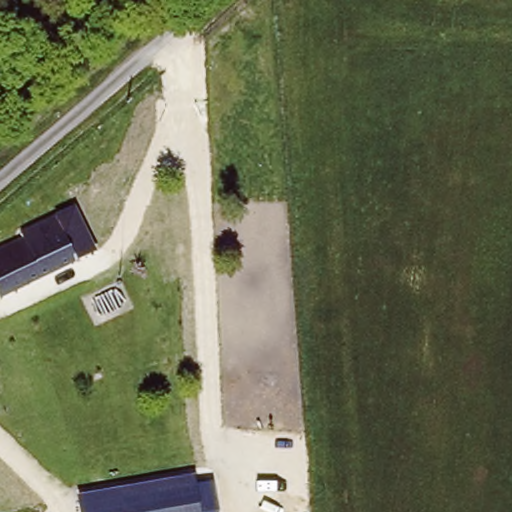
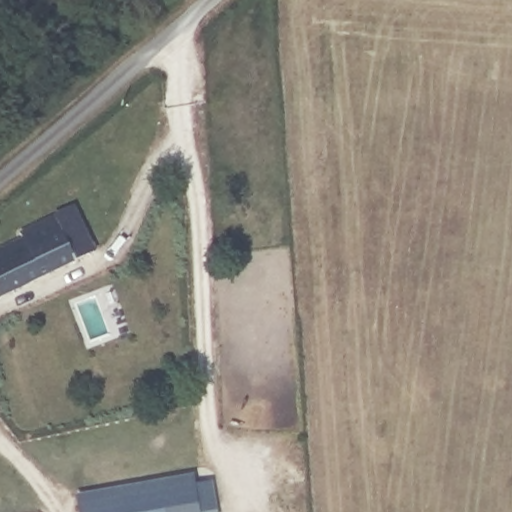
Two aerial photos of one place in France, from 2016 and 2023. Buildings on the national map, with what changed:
unchanged [(0,293),(0,251),(23,240),(21,235),(77,208),(87,226),(100,252),(85,260),(3,301),(0,293)]
unchanged [(195,473),(196,478),(214,477),(220,512),(82,512),(79,492),(195,473)]

